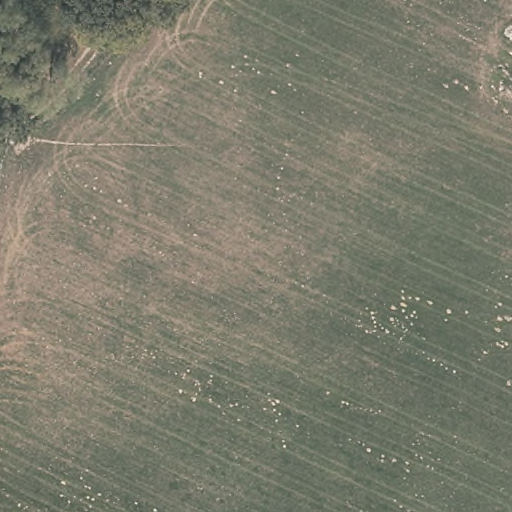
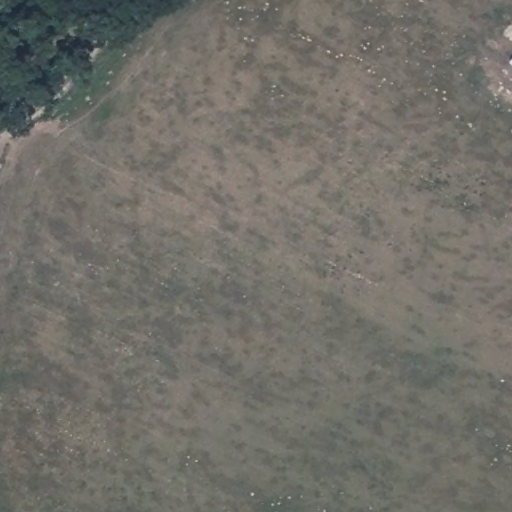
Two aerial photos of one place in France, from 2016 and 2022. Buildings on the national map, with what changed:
[]

